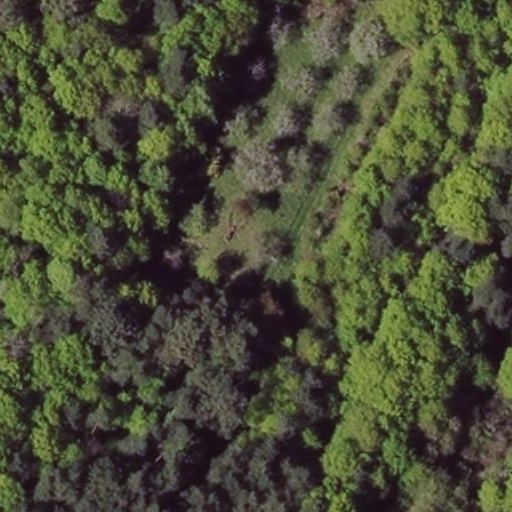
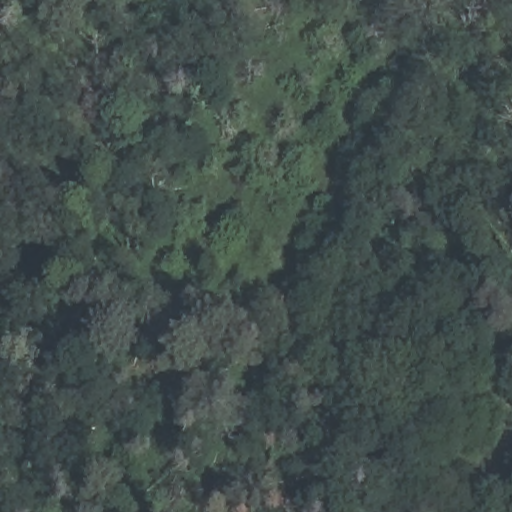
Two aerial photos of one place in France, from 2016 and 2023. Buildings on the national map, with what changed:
unchanged [(28,365),(22,383),(10,374),(18,359),(28,365)]

